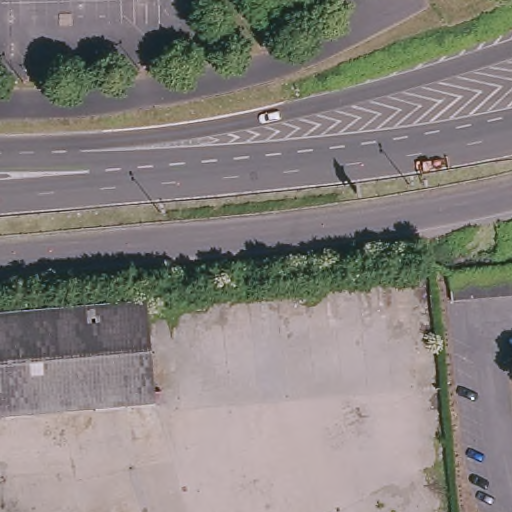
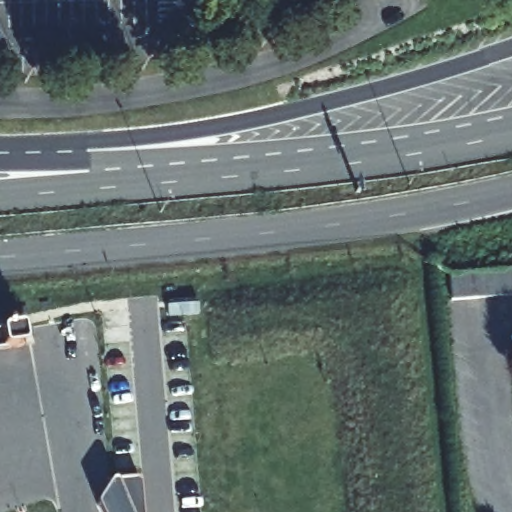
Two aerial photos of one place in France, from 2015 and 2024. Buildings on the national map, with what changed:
demolished [(449,298),(449,281),(449,278),(449,271),(512,266),(512,293),(449,298)]
demolished [(0,415),(0,312),(145,299),(154,402),(0,415)]
new [(140,482),(142,487),(143,512),(100,512),(97,507),(98,502),(107,488),(111,482),(115,481),(137,480),(140,482)]

